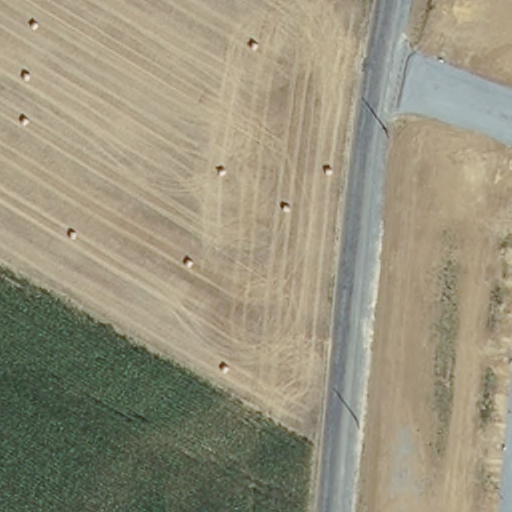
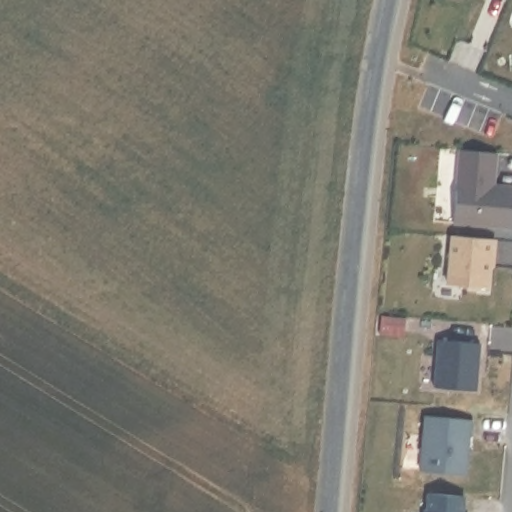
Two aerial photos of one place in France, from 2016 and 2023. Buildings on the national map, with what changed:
new [(497,151),(495,173),(494,184),(512,185),(512,215),(511,227),(454,221),(460,148),(497,151)]
new [(449,232),(492,236),(490,252),(487,252),(484,284),(444,281),(449,232)]
new [(466,387),(430,384),(434,337),(477,340),(474,373),(473,388),(466,387)]
new [(469,434),(466,433),(462,472),(420,468),(417,468),(422,413),(450,416),(470,417),(469,434)]
new [(465,496),(464,512),(422,512),(424,494),(465,496)]

